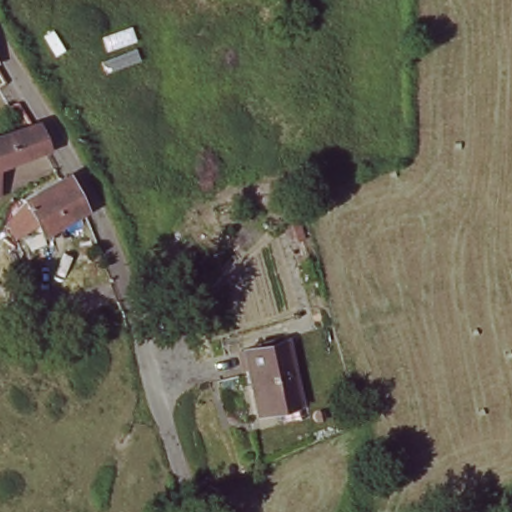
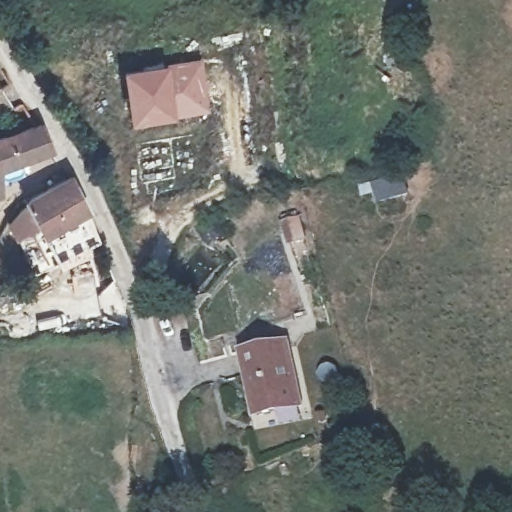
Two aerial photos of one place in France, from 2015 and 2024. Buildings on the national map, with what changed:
unchanged [(1,56),(0,57),(0,55),(1,56)]
new [(163,68),(187,65),(193,112),(168,115),(133,121),(127,75),(163,68)]
unchanged [(42,125),(52,153),(2,170),(8,198),(0,200),(0,136),(42,125)]
unchanged [(43,236),(25,202),(74,181),(90,217),(43,236)]
unchanged [(307,232),(303,212),(318,208),(321,229),(307,232)]
unchanged [(299,408),(256,412),(251,346),(293,342),(299,408)]

